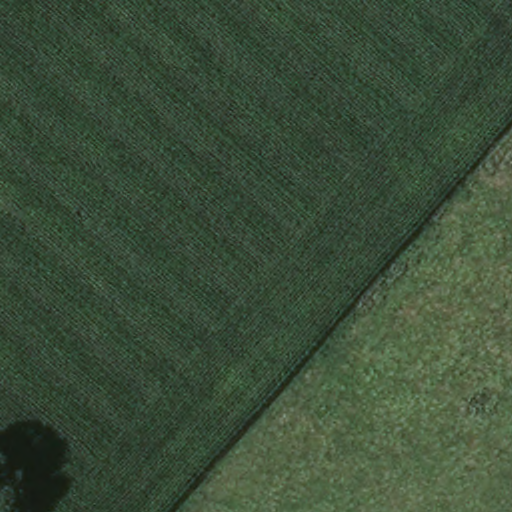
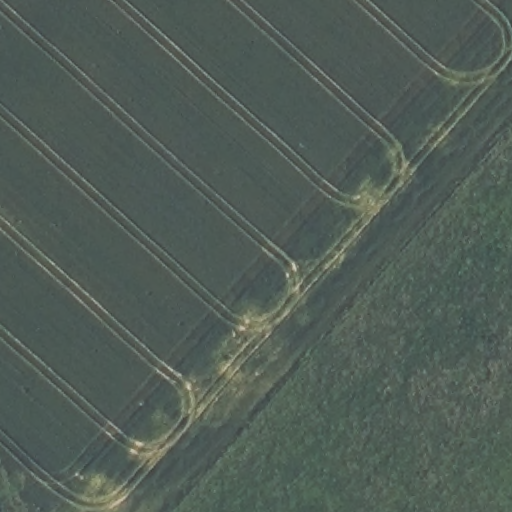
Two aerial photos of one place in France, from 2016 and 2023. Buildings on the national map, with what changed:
[]

